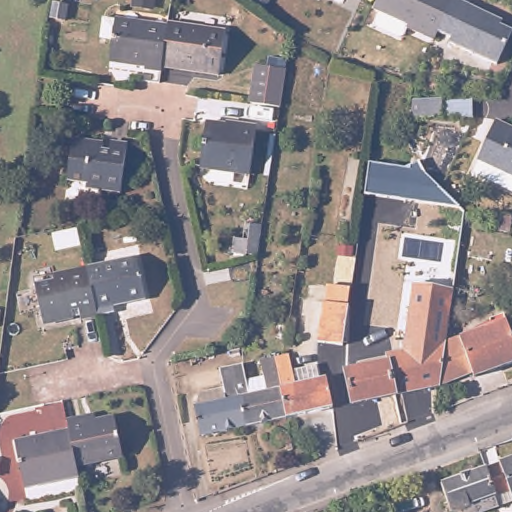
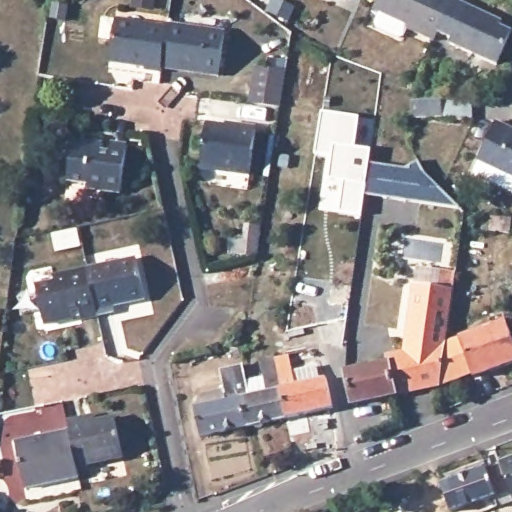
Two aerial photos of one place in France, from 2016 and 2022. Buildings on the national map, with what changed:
unchanged [(399,26),(395,34),(391,36),(370,27),(368,22),(373,12),(366,9),(371,0),(442,0),(429,30),(425,38),(399,26)]
unchanged [(487,14),(494,18),(492,22),(504,28),(489,61),(441,40),(443,36),(429,30),(442,0),(455,0),(487,14)]
unchanged [(164,73),(148,71),(148,67),(113,62),(117,40),(105,38),(107,18),(171,27),(165,69),(164,73)]
unchanged [(194,73),(165,69),(171,27),(172,24),(227,32),(222,70),(221,77),(194,73)]
unchanged [(278,109),(248,105),(251,83),(254,68),(274,72),(283,72),(278,109)]
unchanged [(411,99),(441,97),(443,114),(410,118),(411,99)]
new [(363,196),(361,216),(338,212),(341,181),(328,179),(331,157),(313,154),(320,111),(359,116),(355,147),(370,149),(369,162),(363,196)]
unchanged [(512,127),(512,190),(511,190),(472,172),(470,167),(475,157),(474,156),(491,118),(512,127)]
unchanged [(201,165),(206,120),(256,126),(250,171),(201,165)]
unchanged [(68,183),(73,142),(102,146),(102,154),(108,155),(110,145),(125,147),(119,193),(85,189),(85,185),(68,183)]
unchanged [(407,168),(418,160),(423,171),(460,209),(363,196),(369,162),(407,168)]
unchanged [(87,266),(137,254),(146,297),(113,305),(114,311),(96,315),(96,313),(87,266)]
unchanged [(87,266),(96,313),(80,317),(78,307),(71,308),(71,316),(43,322),(35,282),(53,279),(52,273),(87,266)]
unchanged [(408,353),(414,316),(418,285),(458,290),(451,341),(444,385),(444,387),(357,405),(350,373),(391,363),(392,357),(408,353)]
demolished [(318,295),(343,298),(351,299),(348,317),(340,316),(337,336),(313,334),(318,295)]
unchanged [(512,323),(512,364),(478,376),(476,371),(444,385),(451,341),(510,319),(512,323)]
unchanged [(293,357),(298,372),(321,368),(324,382),(331,380),(337,410),(291,420),(280,369),(289,367),(287,358),(293,357)]
unchanged [(245,398),(255,396),(272,392),(266,363),(287,358),(289,367),(280,369),(291,420),(251,428),(245,398)]
unchanged [(204,393),(228,388),(224,373),(249,368),(255,396),(245,398),(251,428),(205,438),(199,408),(204,393)]
unchanged [(86,417),(97,415),(98,421),(114,418),(115,421),(122,455),(78,465),(71,430),(68,421),(86,417)]
unchanged [(71,430),(78,465),(80,477),(27,488),(18,442),(71,430)]
unchanged [(500,462),(512,458),(512,499),(509,491),(499,495),(502,502),(498,504),(486,470),(501,464),(500,462)]
unchanged [(498,504),(499,506),(484,512),(462,512),(461,509),(453,512),(451,512),(441,484),(485,467),(486,470),(498,504)]

